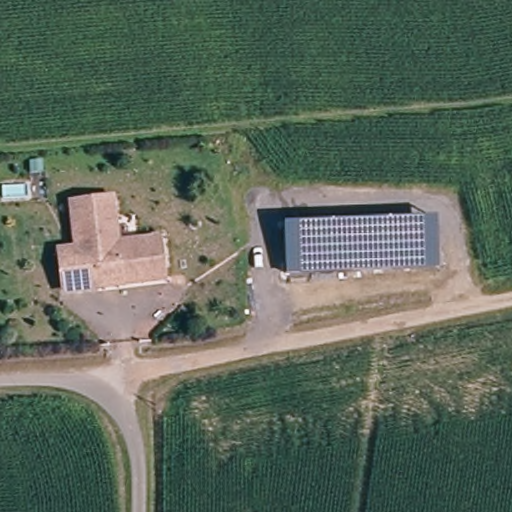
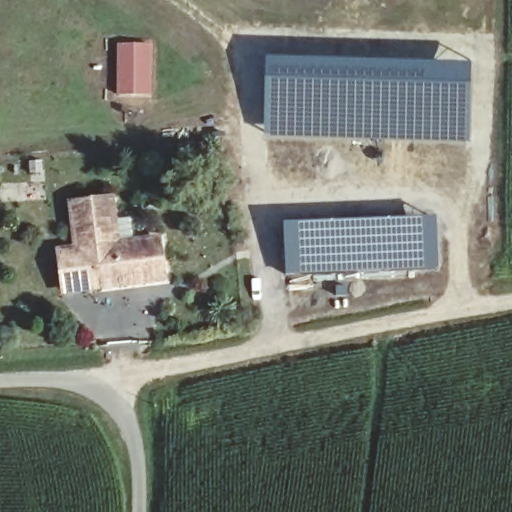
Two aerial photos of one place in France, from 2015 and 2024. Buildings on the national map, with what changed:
new [(116,42),(153,43),(152,96),(116,95),(116,42)]
new [(472,140),(268,134),(269,52),(473,57),(472,140)]
unchanged [(76,287),(71,247),(88,245),(82,199),(121,194),(128,240),(170,234),(175,267),(176,274),(161,276),(132,280),(111,282),(76,287)]
unchanged [(285,222),(438,215),(440,267),(286,273),(285,222)]

